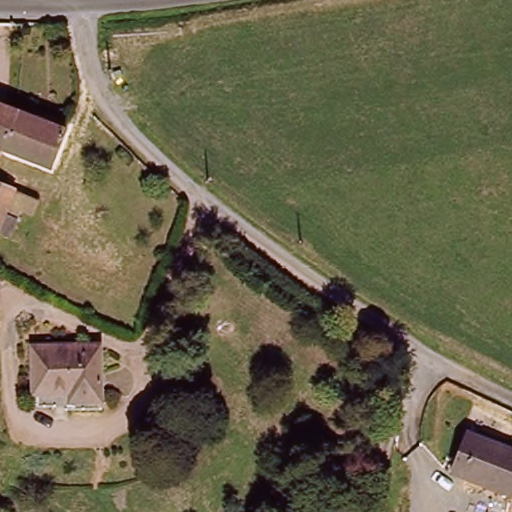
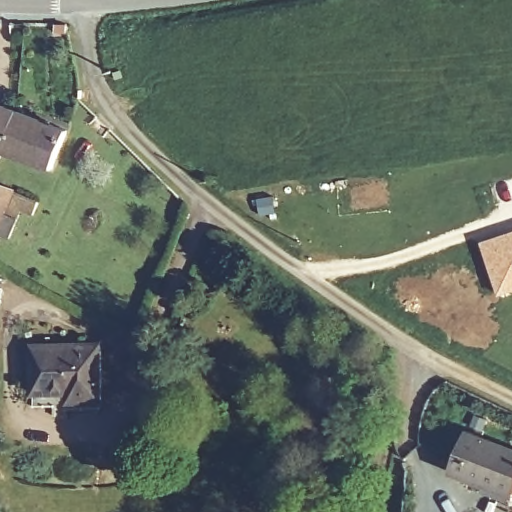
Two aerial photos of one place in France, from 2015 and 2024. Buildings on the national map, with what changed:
unchanged [(0,103),(16,109),(0,145),(0,103)]
unchanged [(49,167),(0,149),(0,145),(16,109),(64,128),(49,167)]
unchanged [(31,217),(20,212),(8,240),(0,236),(0,186),(37,202),(31,217)]
new [(497,297),(481,244),(512,233),(512,292),(497,297)]
unchanged [(99,340),(100,398),(67,400),(66,392),(33,392),(32,342),(99,340)]
unchanged [(451,472),(466,432),(512,450),(512,491),(511,495),(451,472)]
new [(509,507),(511,495),(512,491),(512,508),(509,507)]

